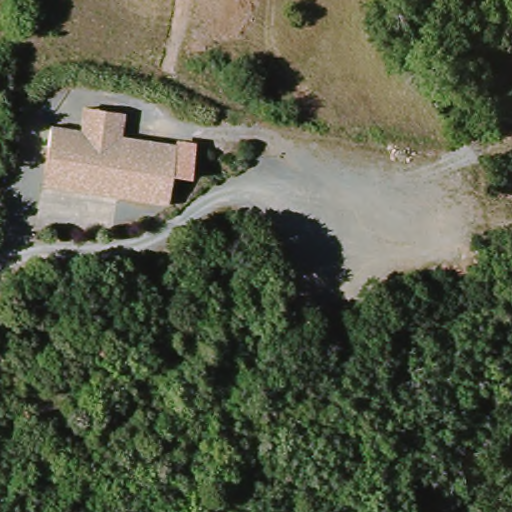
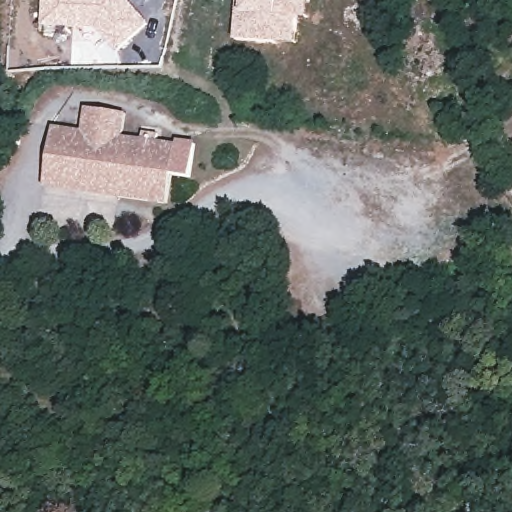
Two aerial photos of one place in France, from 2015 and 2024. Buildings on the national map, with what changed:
new [(127,0),(149,23),(118,52),(92,29),(40,26),(41,0),(127,0)]
new [(298,19),(297,44),(233,41),(237,0),(309,0),(308,19),(298,19)]
unchanged [(197,144),(195,174),(176,173),(172,202),(45,189),(52,127),(82,129),(84,111),(122,114),(121,134),(197,144)]

